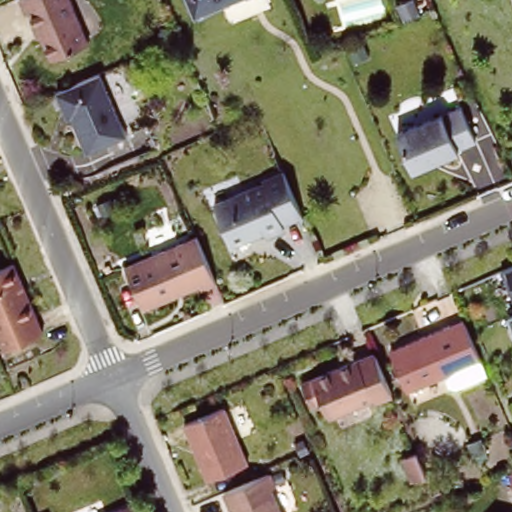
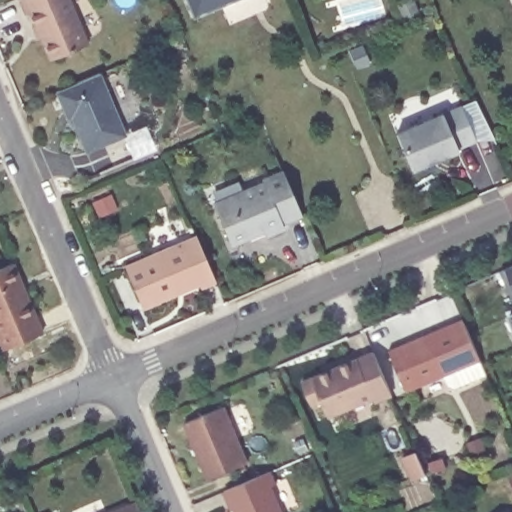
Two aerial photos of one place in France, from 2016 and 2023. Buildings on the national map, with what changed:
unchanged [(91,35),(52,52),(32,5),(28,6),(25,0),(75,0),(91,35)]
unchanged [(194,16),(187,0),(233,0),(194,16)]
unchanged [(69,107),(59,89),(103,70),(131,131),(92,148),(76,112),(71,115),(69,107)]
unchanged [(472,142),(454,150),(456,152),(412,171),(396,136),(460,108),(472,142)]
unchanged [(281,220),(282,225),(267,232),(262,222),(247,229),(249,234),(232,241),(215,200),(262,179),(262,177),(282,170),(300,212),(281,220)]
unchanged [(202,282),(200,280),(146,302),(128,261),(200,231),(219,276),(202,282)]
unchanged [(5,343),(0,334),(0,265),(12,260),(42,328),(5,343)]
unchanged [(509,302),(504,292),(497,275),(512,268),(512,311),(509,302)]
unchanged [(454,384),(444,380),(440,371),(405,384),(388,344),(460,312),(485,371),(454,384)]
unchanged [(506,321),(512,317),(512,334),(506,321)]
unchanged [(379,398),(377,396),(332,415),(325,400),(314,404),(304,382),(376,351),(394,392),(379,398)]
unchanged [(248,456),(207,473),(185,418),(225,401),(248,456)]
unchanged [(427,472),(413,478),(404,455),(417,449),(427,472)]
unchanged [(277,477),(272,482),(285,512),(239,512),(234,500),(232,501),(225,485),(272,464),(277,477)]
unchanged [(109,512),(136,501),(140,512),(109,512)]
unchanged [(508,512),(512,510),(512,512),(508,512)]

